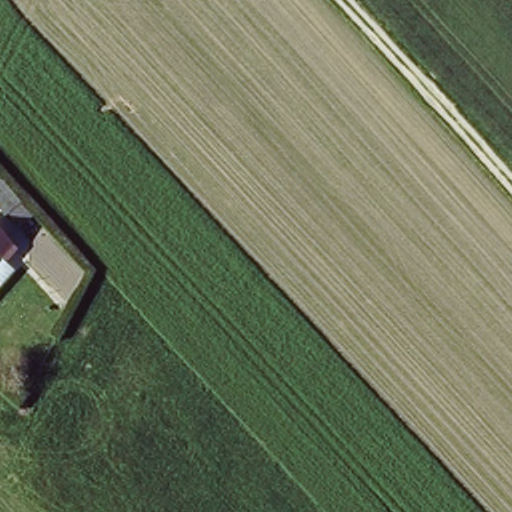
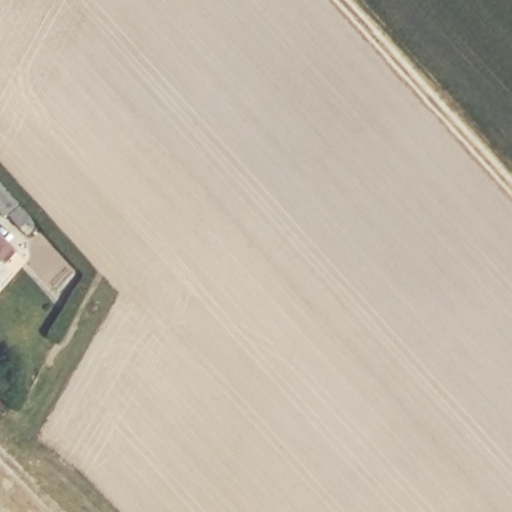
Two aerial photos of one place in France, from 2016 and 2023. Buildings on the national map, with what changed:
unchanged [(3,266),(0,265),(0,241),(12,246),(3,266)]

